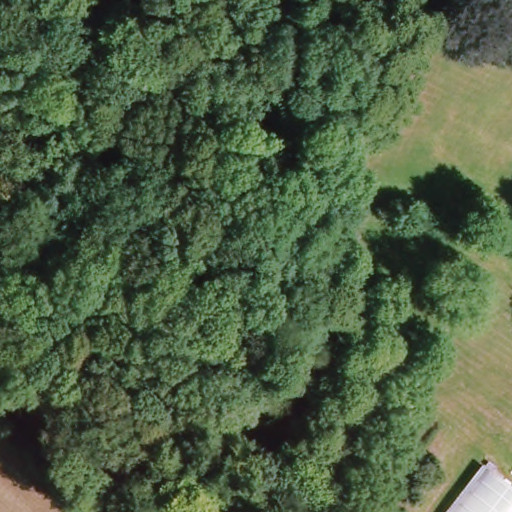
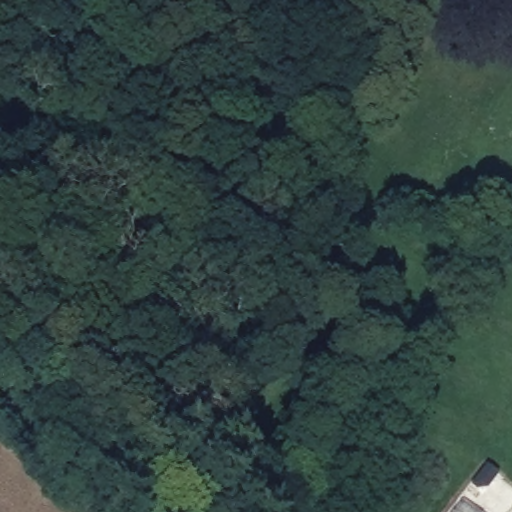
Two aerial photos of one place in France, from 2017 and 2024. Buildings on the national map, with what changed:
unchanged [(477,465),(512,491),(512,512),(442,512),(477,465)]

